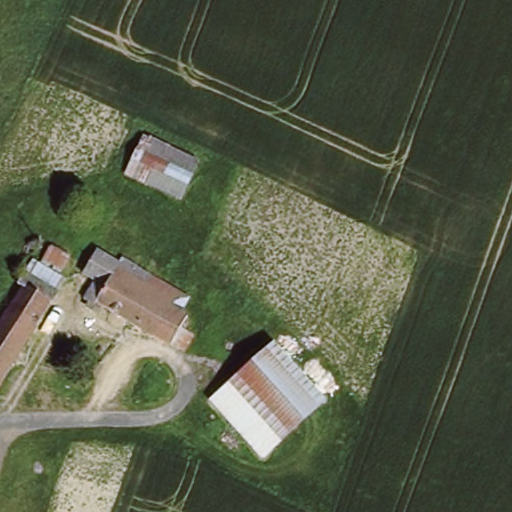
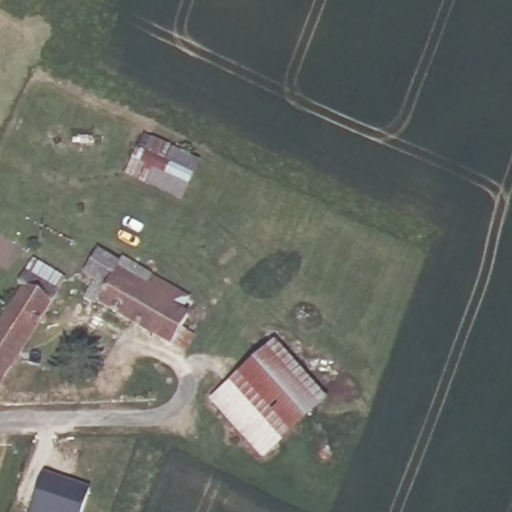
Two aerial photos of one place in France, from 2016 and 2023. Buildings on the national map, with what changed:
unchanged [(196,164),(179,199),(128,175),(144,140),(196,164)]
unchanged [(116,263),(119,259),(188,297),(179,312),(186,316),(179,327),(195,336),(186,352),(93,302),(92,306),(81,300),(91,280),(81,274),(93,251),(116,263)]
unchanged [(61,281),(0,373),(0,323),(25,286),(19,282),(24,273),(32,261),(61,281)]
unchanged [(327,402),(286,439),(281,443),(263,460),(213,403),(277,346),(327,402)]
new [(44,475),(91,490),(83,512),(33,512),(44,475)]

